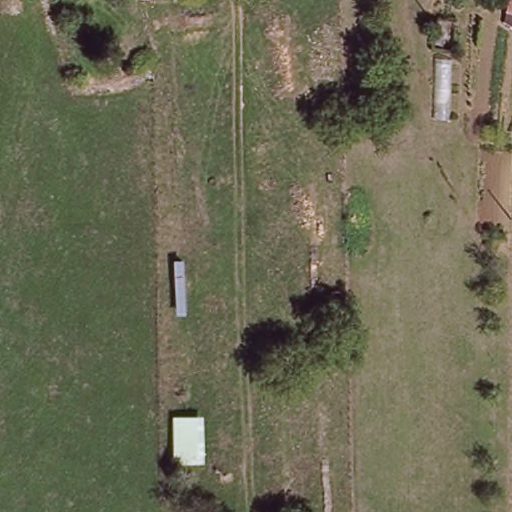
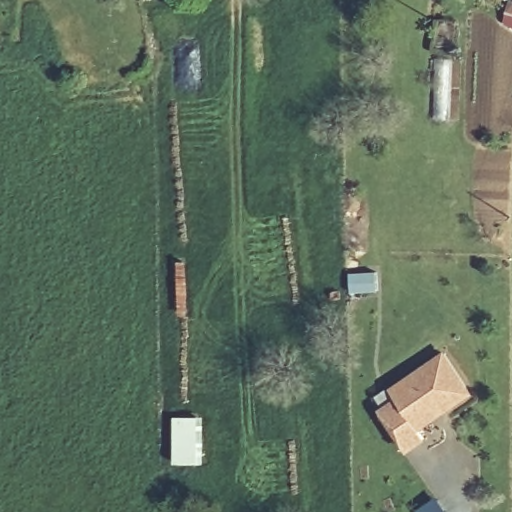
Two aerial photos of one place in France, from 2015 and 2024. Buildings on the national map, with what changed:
new [(471,392),(440,414),(437,410),(416,425),(427,439),(408,450),(381,412),(397,399),(391,391),(444,355),(471,392)]
unchanged [(177,414),(206,415),(207,458),(177,461),(177,414)]

